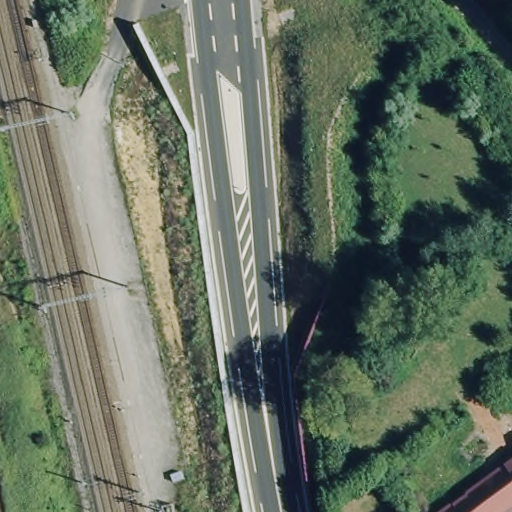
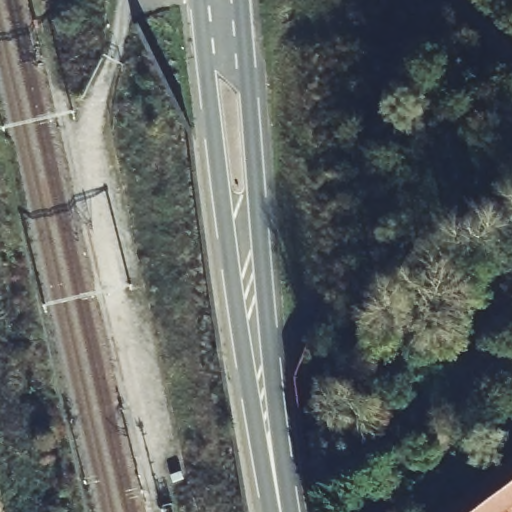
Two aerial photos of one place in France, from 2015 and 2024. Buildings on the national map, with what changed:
unchanged [(512,502),(498,512),(434,512),(512,456),(512,502)]

